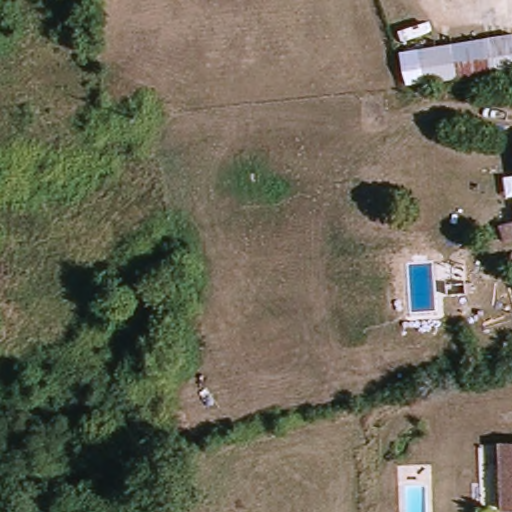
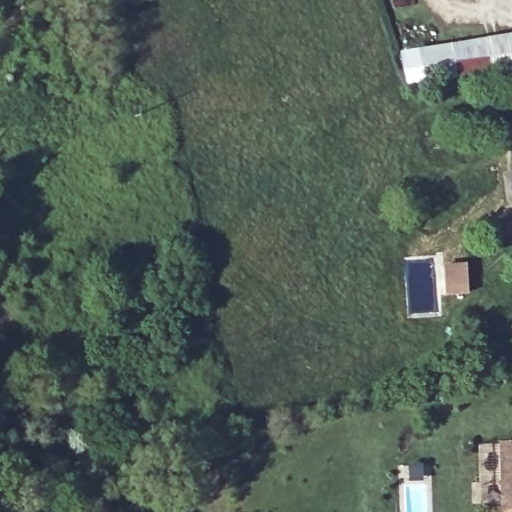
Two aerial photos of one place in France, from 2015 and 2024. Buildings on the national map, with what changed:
unchanged [(401,71),(418,69),(416,50),(512,36),(512,74),(405,89),(401,71)]
unchanged [(504,511),(502,447),(512,447),(512,511),(504,511)]

